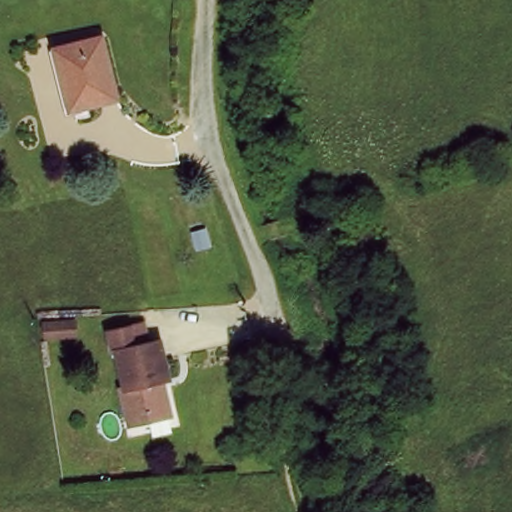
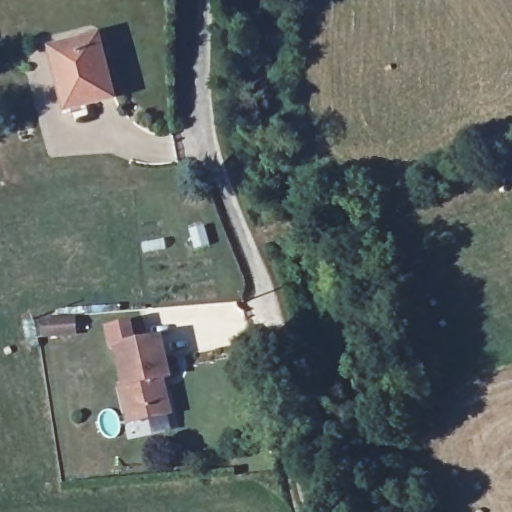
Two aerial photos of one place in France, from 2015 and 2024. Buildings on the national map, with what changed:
unchanged [(57,47),(103,36),(118,96),(72,108),(57,47)]
unchanged [(215,249),(197,254),(192,234),(209,228),(215,249)]
unchanged [(71,335),(41,337),(40,322),(71,320),(71,335)]
unchanged [(110,329),(145,323),(149,342),(162,339),(172,384),(165,386),(172,415),(131,424),(123,388),(126,387),(118,349),(115,349),(110,329)]

